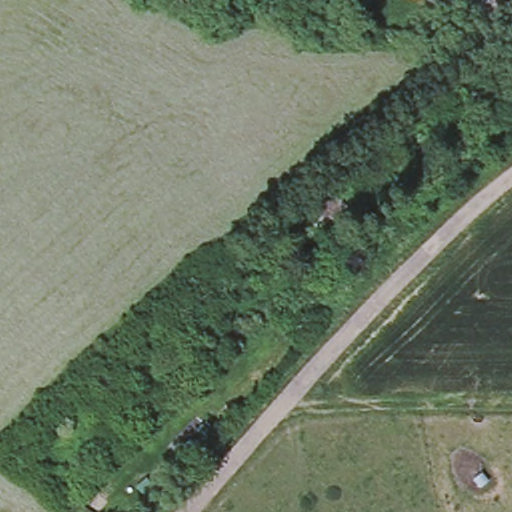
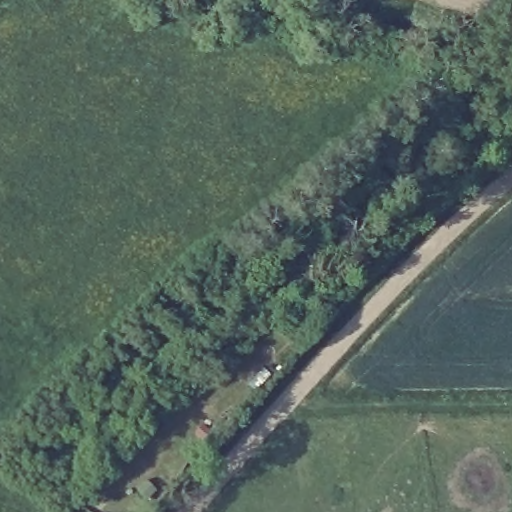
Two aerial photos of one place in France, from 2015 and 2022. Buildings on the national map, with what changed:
unchanged [(337,210),(312,232),(300,219),(325,196),(337,210)]

